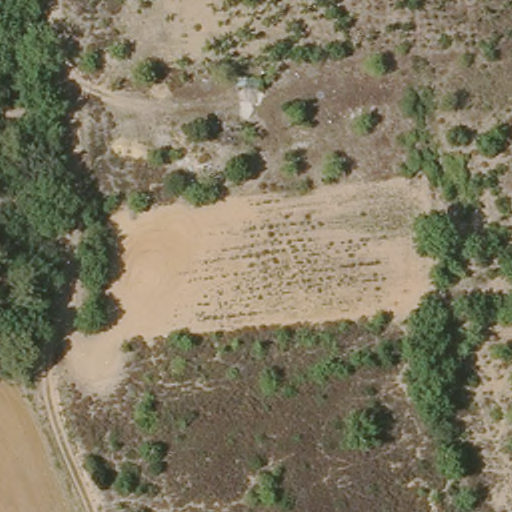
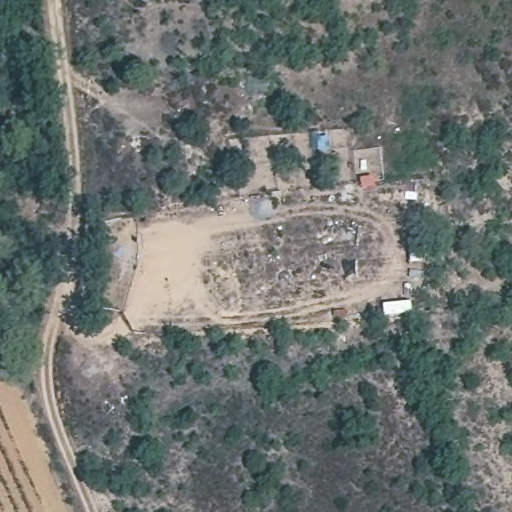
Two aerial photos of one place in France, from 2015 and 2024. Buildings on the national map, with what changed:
unchanged [(247,80),(267,80),(265,102),(240,99),(247,80)]

